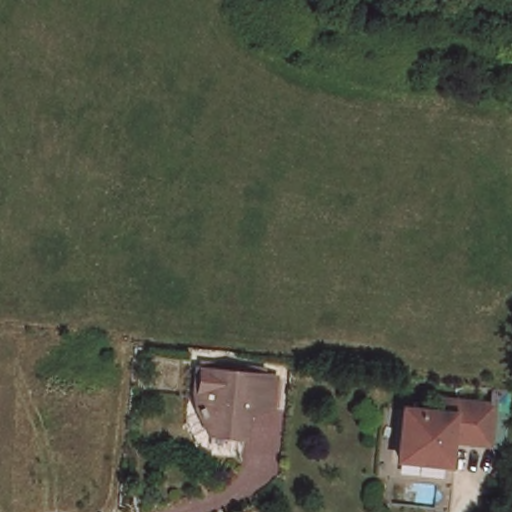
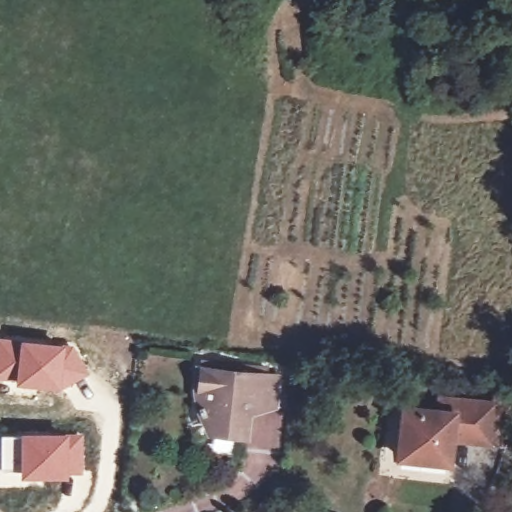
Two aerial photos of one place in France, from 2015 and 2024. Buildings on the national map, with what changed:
new [(75,343),(92,374),(61,391),(15,385),(15,381),(0,379),(0,336),(64,343),(75,343)]
unchanged [(205,405),(207,391),(201,390),(205,362),(285,375),(282,407),(255,403),(251,435),(218,430),(208,414),(205,415),(202,407),(205,405)]
unchanged [(451,465),(403,460),(406,412),(439,415),(440,400),(446,400),(497,405),(494,444),(461,441),(453,440),(451,465)]
new [(86,431),(85,475),(71,476),(71,479),(20,479),(19,470),(0,470),(0,434),(20,434),(20,432),(86,431)]

